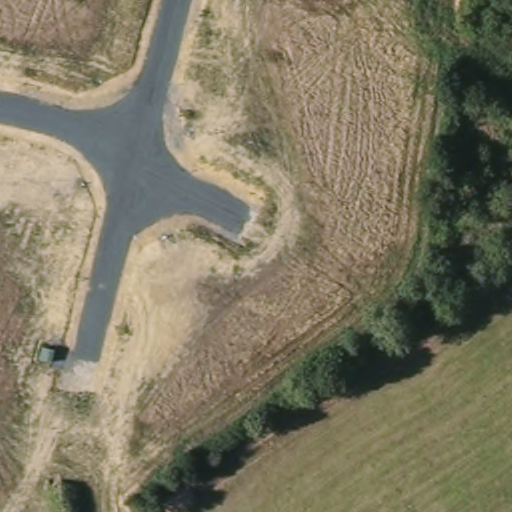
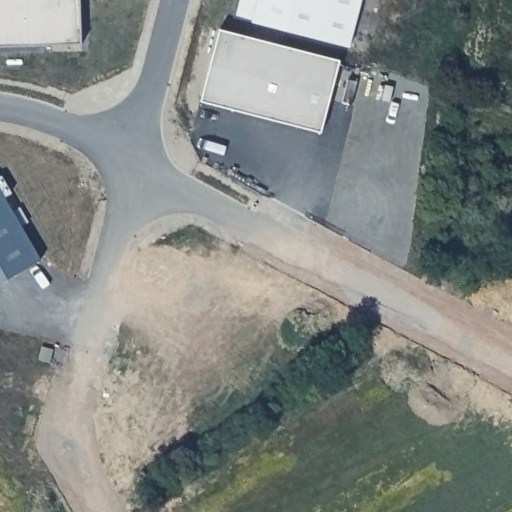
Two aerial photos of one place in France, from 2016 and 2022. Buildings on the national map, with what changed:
new [(80,0),(82,44),(0,45),(0,0),(80,0)]
new [(220,28),(341,60),(322,131),(201,100),(220,28)]

